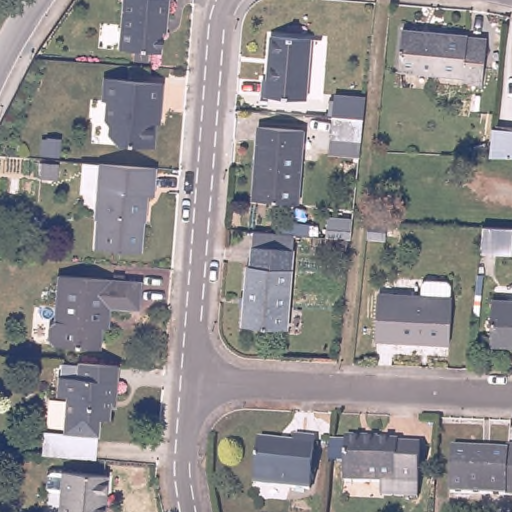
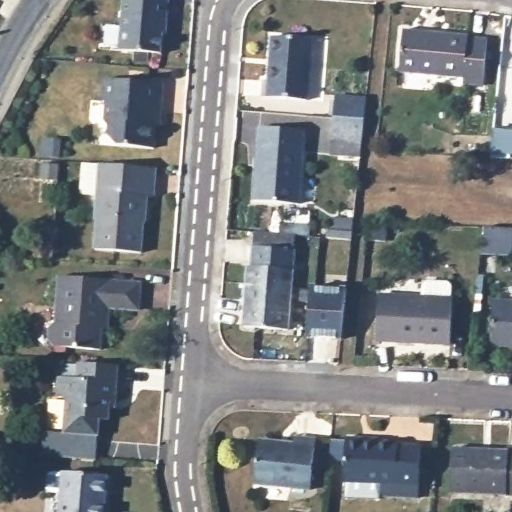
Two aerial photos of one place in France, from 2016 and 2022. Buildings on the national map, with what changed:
unchanged [(156,53),(121,51),(123,25),(118,25),(120,0),(166,0),(164,21),(162,34),(158,33),(156,53)]
unchanged [(407,30),(472,35),(472,37),(490,39),(486,85),(466,84),(466,77),(404,72),(407,30)]
unchanged [(271,75),(276,75),(279,31),(319,34),(315,95),(270,92),(271,75)]
unchanged [(101,80),(158,84),(156,110),(153,109),(149,146),(114,142),(106,133),(107,124),(102,121),(104,103),(99,102),(101,80)]
unchanged [(337,117),(338,97),(369,100),(367,120),(363,156),(347,155),(334,154),(335,139),(337,117)]
unchanged [(267,122),(312,126),(306,199),(261,196),(267,122)]
unchanged [(512,128),(512,158),(499,157),(502,127),(512,128)]
unchanged [(156,194),(149,193),(148,220),(145,220),(143,252),(97,249),(99,218),(97,217),(99,196),(84,195),(87,164),(101,165),(158,169),(156,194)]
unchanged [(490,224),(512,224),(512,255),(487,255),(490,224)]
unchanged [(247,327),(252,266),(255,266),(256,246),(258,232),(298,236),(297,249),(292,331),(247,327)]
unchanged [(52,327),(58,321),(62,277),(139,283),(137,311),(113,308),(112,320),(107,320),(104,350),(57,346),(51,340),(52,327)]
unchanged [(425,301),(425,288),(429,285),(451,286),(455,290),(454,302),(455,302),(454,348),(381,346),(382,299),(425,301)]
new [(310,287),(344,290),(339,339),(307,337),(310,287)]
unchanged [(512,300),(512,346),(500,346),(502,300),(512,300)]
unchanged [(117,371),(114,406),(110,406),(107,426),(99,425),(98,442),(64,440),(67,402),(57,402),(58,383),(76,384),(77,368),(117,371)]
unchanged [(268,440),(303,444),(304,437),(325,439),(319,490),(263,484),(268,440)]
unchanged [(384,497),(384,485),(348,483),(349,441),(349,437),(383,438),(382,442),(402,442),(402,446),(424,447),(423,486),(421,498),(384,497)]
unchanged [(43,438),(64,440),(98,442),(95,465),(41,461),(43,438)]
unchanged [(511,446),(511,442),(512,442),(512,490),(455,488),(456,443),(511,446)]
unchanged [(64,500),(53,498),(49,494),(50,482),(54,478),(66,480),(66,477),(110,481),(107,512),(63,512),(64,500)]

